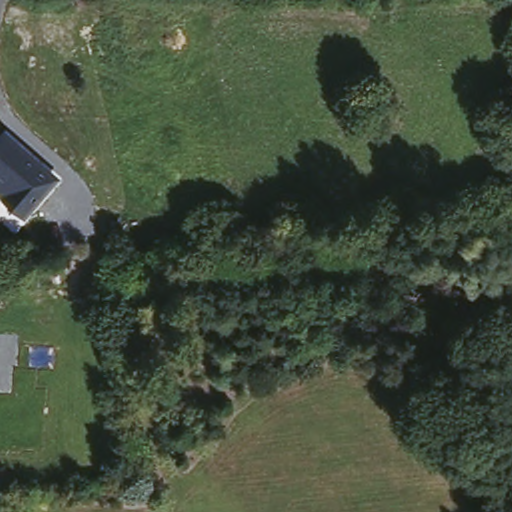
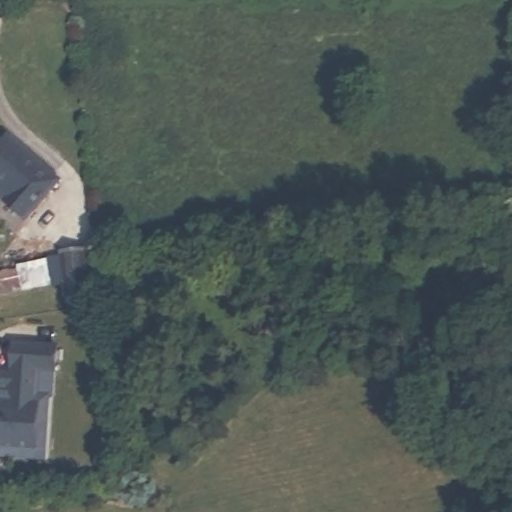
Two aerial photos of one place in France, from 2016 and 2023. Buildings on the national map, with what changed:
unchanged [(27,222),(0,198),(0,138),(8,130),(64,177),(27,222)]
new [(87,247),(90,296),(61,297),(58,249),(87,247)]
new [(8,353),(50,355),(45,458),(0,457),(0,382),(6,382),(8,353)]

